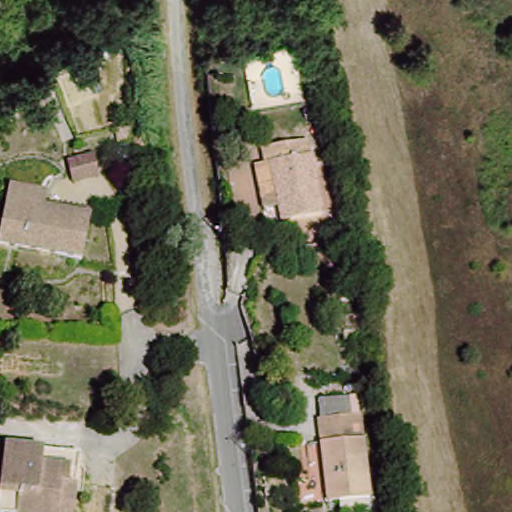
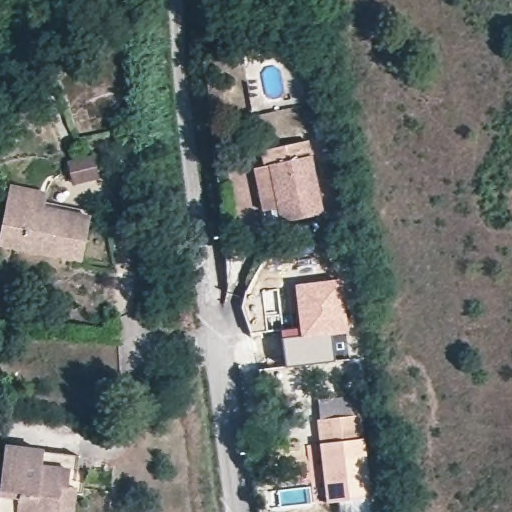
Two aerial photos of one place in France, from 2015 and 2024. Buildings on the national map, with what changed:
new [(106,139),(112,163),(86,170),(79,145),(106,139)]
unchanged [(260,164),(268,162),(265,148),(308,139),(325,213),(286,221),(283,209),(271,210),(260,164)]
unchanged [(0,245),(0,223),(4,206),(7,190),(41,199),(40,207),(88,219),(77,262),(0,245)]
new [(342,278),(350,334),(333,336),(300,336),(299,327),(294,284),(342,278)]
new [(299,327),(300,336),(333,336),(336,361),(286,366),(281,329),(299,327)]
unchanged [(375,497),(331,503),(320,419),(360,413),(375,497)]
unchanged [(0,458),(39,461),(75,465),(75,479),(70,478),(69,493),(57,492),(56,512),(0,512),(0,458)]
unchanged [(75,493),(72,512),(56,512),(57,492),(69,493),(75,493)]

